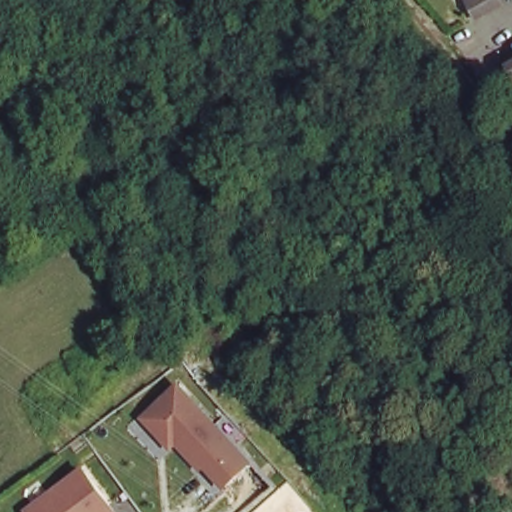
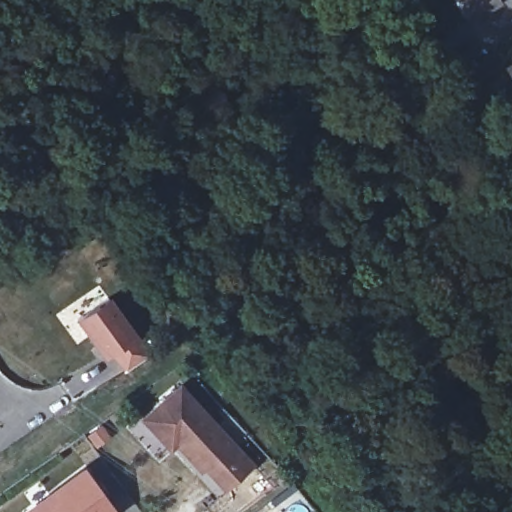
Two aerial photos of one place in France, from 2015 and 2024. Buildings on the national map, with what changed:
unchanged [(477,19),(466,0),(503,0),(505,3),(477,19)]
unchanged [(506,67),(512,61),(512,79),(506,67)]
new [(113,351),(106,357),(75,318),(109,295),(138,335),(150,353),(125,371),(113,351)]
unchanged [(167,441),(147,420),(182,387),(235,445),(254,465),(228,488),(208,467),(205,470),(202,467),(181,445),(175,450),(167,441)]
unchanged [(21,504),(84,462),(120,512),(26,512),(21,504)]

